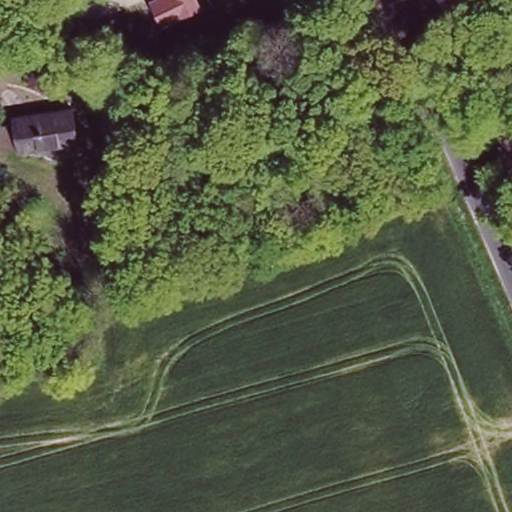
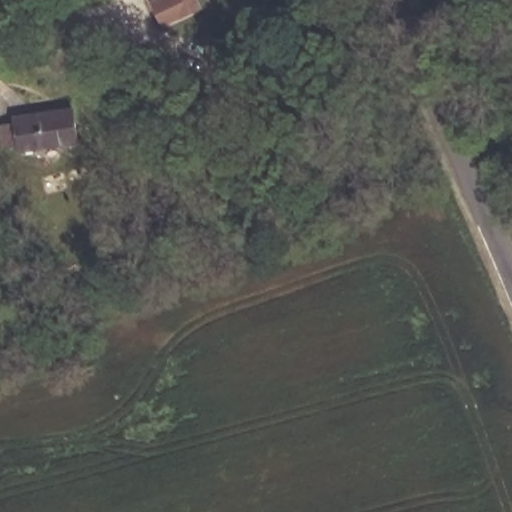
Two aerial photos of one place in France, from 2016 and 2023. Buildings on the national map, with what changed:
unchanged [(173,0),(213,0),(182,16),(173,0)]
unchanged [(4,124),(15,122),(13,116),(69,109),(72,109),(77,141),(19,150),(18,142),(5,144),(4,124)]

